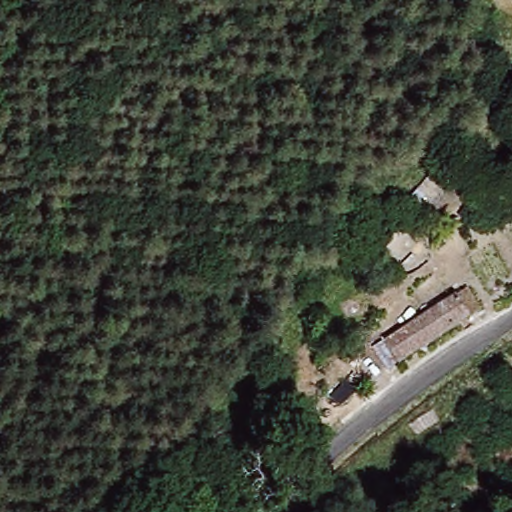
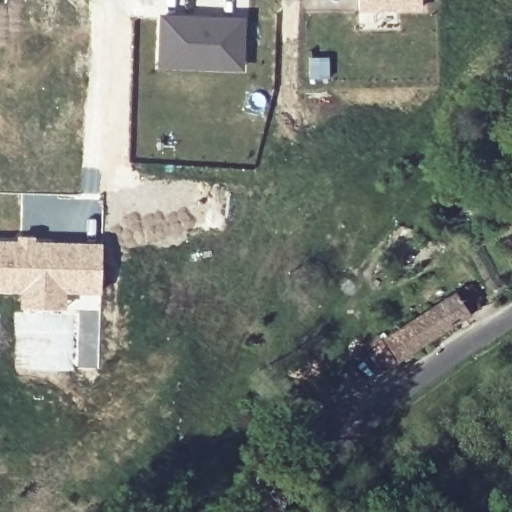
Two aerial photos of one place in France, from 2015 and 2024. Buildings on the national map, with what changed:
new [(422,10),(358,10),(358,0),(422,0),(422,10)]
new [(159,13),(246,16),(244,71),(155,68),(159,13)]
new [(101,291),(65,290),(65,309),(24,309),(24,288),(0,288),(0,244),(101,245),(101,291)]
unchanged [(381,336),(459,295),(472,318),(393,360),(381,336)]

